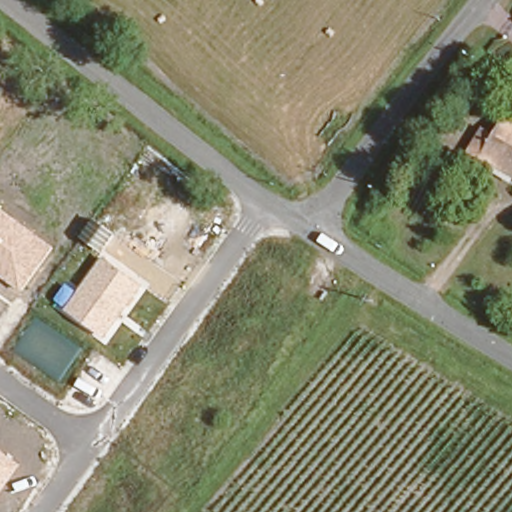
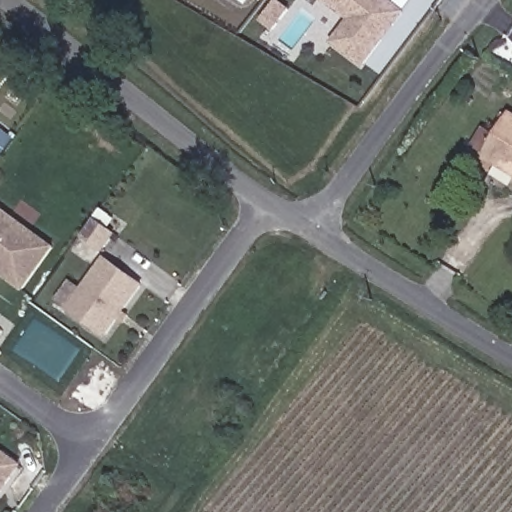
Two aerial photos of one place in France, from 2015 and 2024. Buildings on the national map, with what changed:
new [(360,64),(330,40),(347,17),(325,0),(388,0),(400,9),(389,25),(379,39),(360,64)]
unchanged [(468,145),(481,118),(496,128),(509,108),(512,110),(512,170),(468,145)]
unchanged [(0,275),(0,208),(51,247),(23,291),(0,275)]
unchanged [(105,337),(65,310),(105,255),(146,283),(105,337)]
unchanged [(0,448),(22,464),(0,495),(0,448)]

